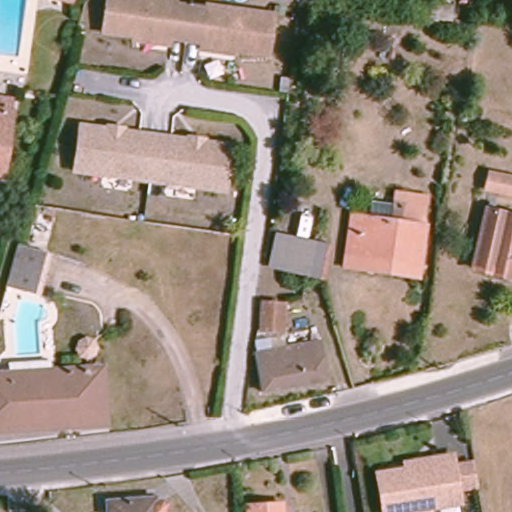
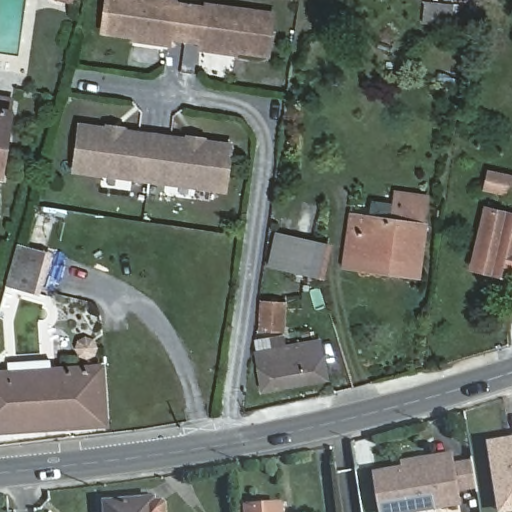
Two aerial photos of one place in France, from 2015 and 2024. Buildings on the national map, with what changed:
unchanged [(61,0),(71,0),(70,2),(61,0)]
unchanged [(135,37),(102,32),(108,0),(162,0),(175,2),(174,5),(188,6),(183,39),(169,37),(168,42),(167,51),(133,47),(135,37)]
unchanged [(451,9),(450,22),(422,19),(423,5),(451,9)]
unchanged [(198,56),(200,47),(200,42),(183,39),(188,6),(206,10),(206,6),(274,16),(267,57),(233,52),(231,63),(198,56)]
unchanged [(9,102),(7,115),(3,144),(0,165),(0,101),(9,102)]
unchanged [(232,144),(224,196),(69,175),(76,124),(232,144)]
unchanged [(512,178),(512,197),(483,190),(487,173),(512,178)]
unchanged [(391,190),(424,196),(418,226),(386,222),(391,190)]
unchanged [(496,206),(494,213),(512,217),(512,273),(511,273),(508,279),(472,270),(488,204),(496,206)]
unchanged [(357,268),(349,267),(340,265),(348,216),(353,217),(386,222),(418,226),(413,264),(411,275),(357,268)]
unchanged [(317,277),(282,270),(269,266),(276,236),(289,239),(325,247),(317,277)]
unchanged [(44,253),(33,292),(7,285),(18,245),(44,253)]
unchanged [(283,305),(280,332),(261,330),(262,304),(283,305)]
unchanged [(99,350),(94,358),(85,360),(78,355),(76,346),(81,339),(89,337),(97,342),(99,350)]
unchanged [(324,380),(262,391),(256,354),(255,343),(283,338),(284,349),(318,345),(324,380)]
unchanged [(102,425),(0,432),(0,375),(4,375),(4,371),(50,369),(49,372),(99,370),(102,425)]
new [(492,442),(512,439),(512,509),(503,510),(500,491),(492,442)]
unchanged [(373,471),(402,466),(401,460),(428,456),(448,452),(458,505),(421,512),(381,512),(373,471)]
unchanged [(159,501),(164,500),(169,504),(170,511),(170,512),(109,512),(108,501),(158,497),(159,501)]
unchanged [(279,504),(280,512),(246,512),(246,506),(279,504)]

